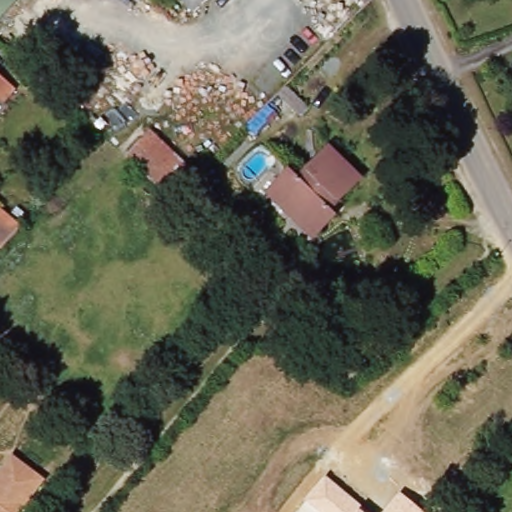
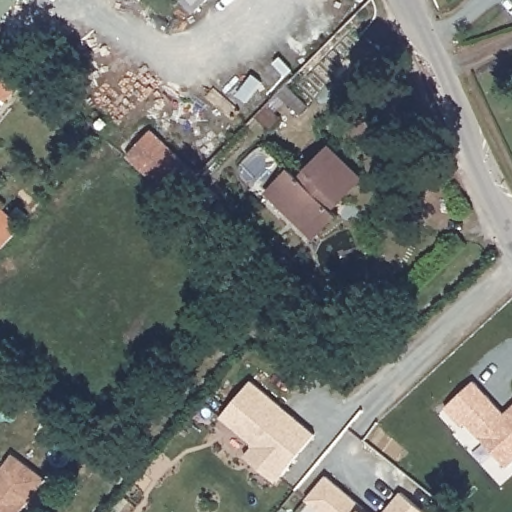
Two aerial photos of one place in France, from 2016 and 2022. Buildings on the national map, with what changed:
unchanged [(0,22),(0,0),(20,0),(0,22)]
unchanged [(183,0),(211,0),(196,15),(183,0)]
unchanged [(5,100),(0,95),(0,71),(17,86),(5,100)]
unchanged [(213,185),(188,210),(125,155),(154,126),(213,185)]
unchanged [(359,180),(327,207),(334,215),(311,237),(268,189),(290,168),(298,176),(330,147),(359,180)]
unchanged [(24,225),(6,245),(0,239),(0,206),(0,205),(24,225)]
new [(280,406),(292,416),(314,435),(274,482),(244,457),(251,448),(251,443),(220,417),(250,381),(280,406)]
new [(504,414),(512,406),(512,462),(506,467),(465,423),(461,426),(444,408),(473,381),(490,399),(504,414)]
unchanged [(12,457),(46,482),(23,512),(0,512),(0,472),(12,457)]
unchanged [(371,512),(319,512),(306,500),(325,476),(371,512)]
unchanged [(422,512),(384,512),(401,492),(422,512)]

